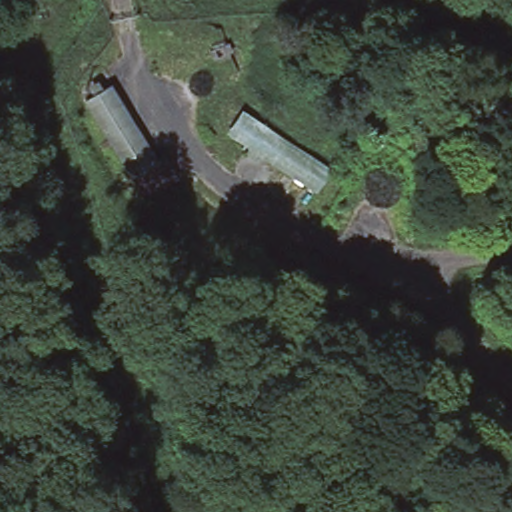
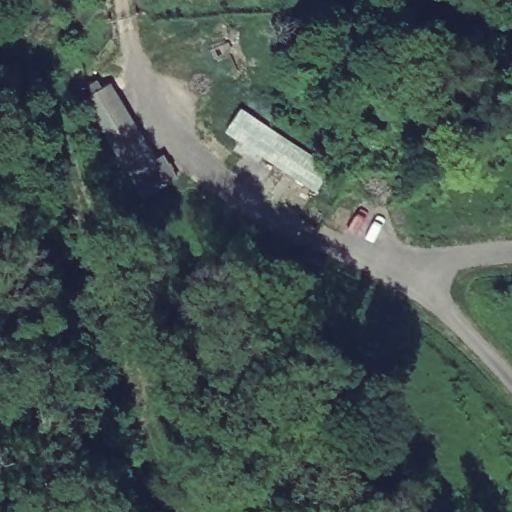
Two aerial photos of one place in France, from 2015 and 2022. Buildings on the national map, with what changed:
unchanged [(156,160),(169,155),(184,181),(141,205),(80,93),(100,80),(105,87),(113,82),(156,160)]
unchanged [(333,161),(319,193),(222,135),(238,102),(333,161)]

